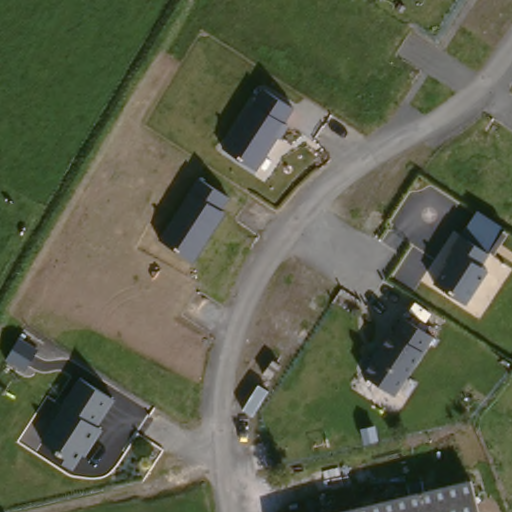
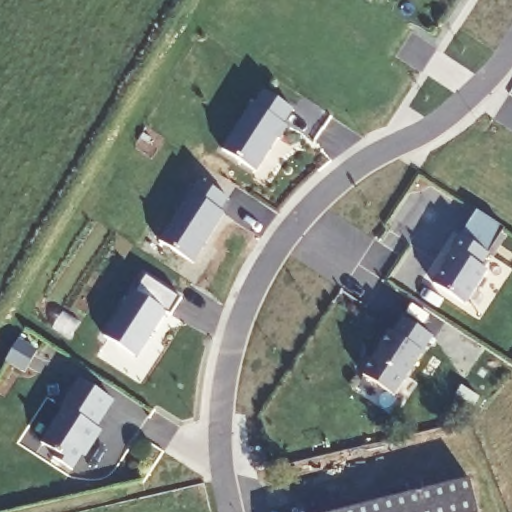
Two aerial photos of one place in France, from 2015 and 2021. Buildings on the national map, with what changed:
unchanged [(298,105),(261,169),(227,149),(265,86),(298,105)]
unchanged [(235,196),(199,260),(165,239),(202,176),(235,196)]
unchanged [(494,249),(486,266),(491,268),(470,306),(438,285),(450,263),(447,260),(464,230),(494,249)]
new [(103,336),(132,289),(136,292),(146,274),(182,298),(170,316),(165,312),(136,358),(103,336)]
unchanged [(438,332),(397,397),(364,373),(404,311),(438,332)]
unchanged [(117,396),(102,425),(107,426),(93,451),(84,455),(77,467),(39,446),(83,376),(117,396)]
unchanged [(482,512),(343,512),(470,477),(482,512)]

